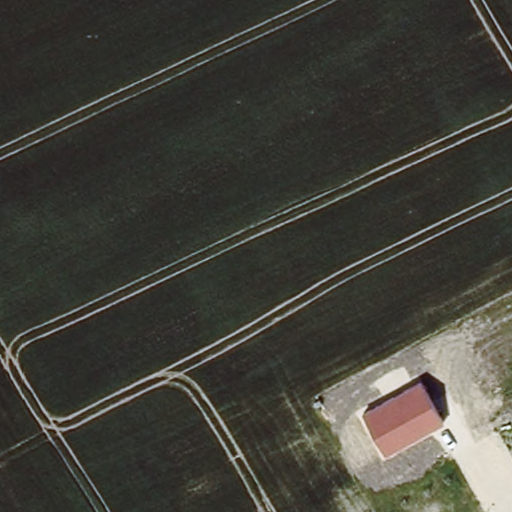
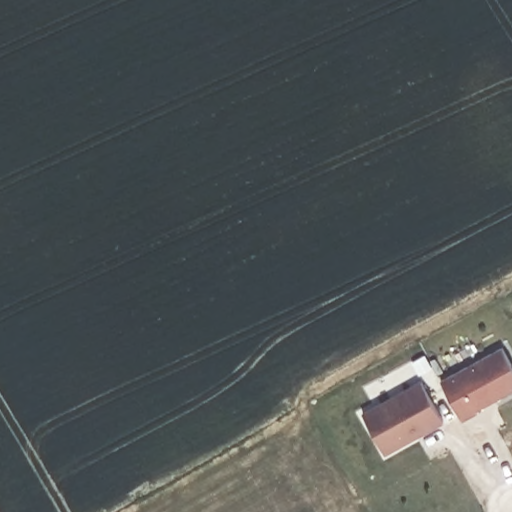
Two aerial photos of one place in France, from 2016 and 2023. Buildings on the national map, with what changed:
new [(502,346),(512,366),(512,392),(477,411),(478,413),(462,420),(442,379),(502,346)]
unchanged [(386,454),(362,412),(420,380),(442,423),(386,454)]

